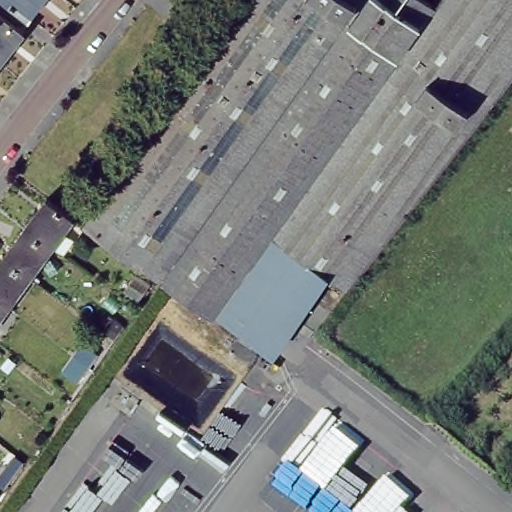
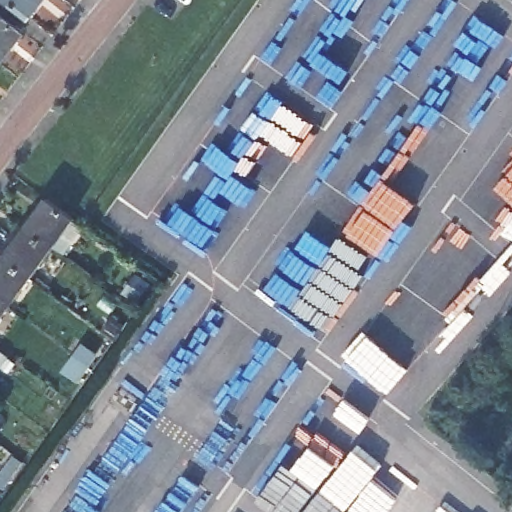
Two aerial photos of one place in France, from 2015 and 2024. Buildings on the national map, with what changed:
unchanged [(23,21),(0,51),(0,0),(19,0),(23,4),(15,14),(23,21)]
unchanged [(23,4),(19,0),(33,0),(28,7),(23,4)]
demolished [(233,0),(512,0),(512,68),(509,72),(382,237),(348,281),(333,270),(331,272),(325,268),(327,266),(314,256),(270,225),(240,266),(216,300),(212,306),(163,271),(162,271),(81,213),(202,43),(233,0)]
unchanged [(41,192),(67,212),(45,242),(19,222),(41,192)]
unchanged [(19,222),(45,242),(23,271),(0,254),(0,248),(19,222)]
unchanged [(23,271),(2,301),(0,299),(0,254),(23,271)]
unchanged [(147,283),(136,298),(124,290),(135,275),(147,283)]
unchanged [(110,292),(103,301),(82,285),(89,277),(110,292)]
unchanged [(2,301),(0,303),(0,299),(2,301)]
unchanged [(74,353),(80,346),(101,362),(95,369),(74,353)]
unchanged [(28,458),(20,452),(30,438),(38,446),(28,458)]
unchanged [(22,462),(4,487),(0,484),(0,473),(14,455),(22,462)]

